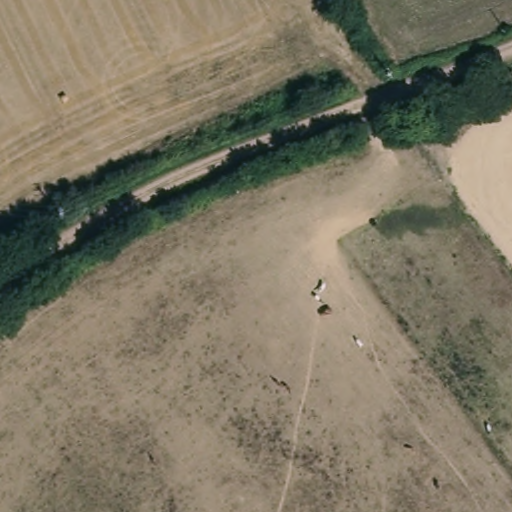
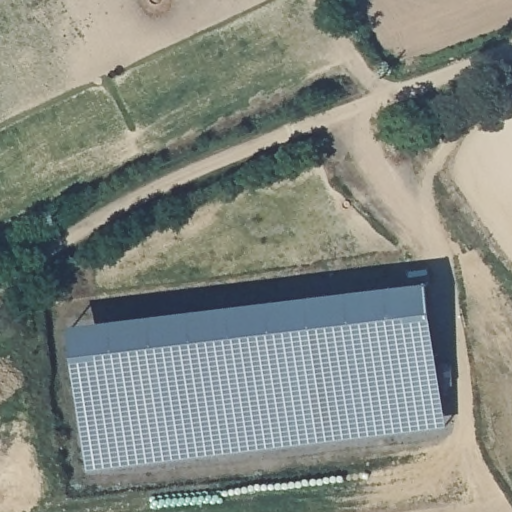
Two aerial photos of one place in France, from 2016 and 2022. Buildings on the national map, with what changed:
new [(449,426),(88,471),(71,323),(431,280),(449,426)]

